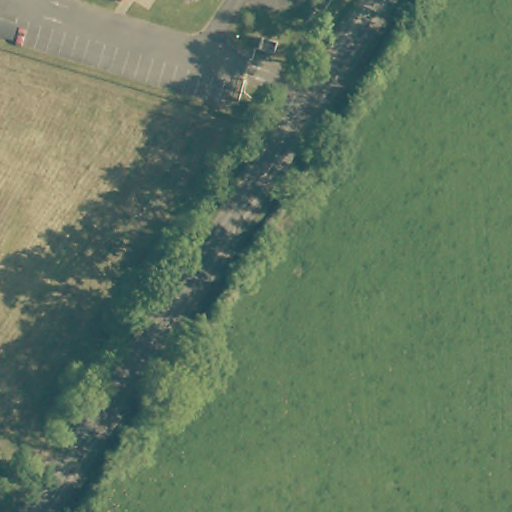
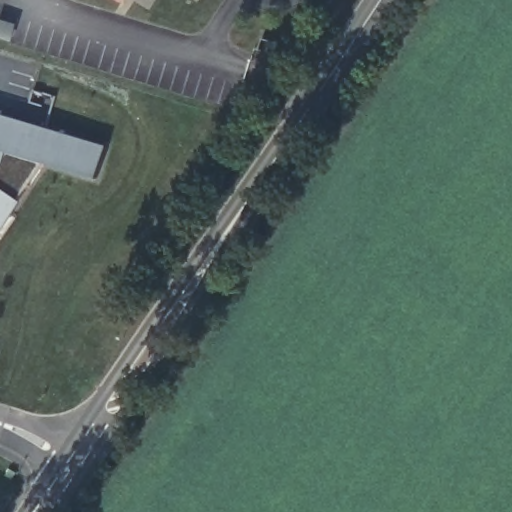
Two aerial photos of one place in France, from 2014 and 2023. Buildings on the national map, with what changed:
new [(107,146),(99,177),(44,164),(19,198),(22,202),(2,231),(0,230),(0,114),(107,146)]

